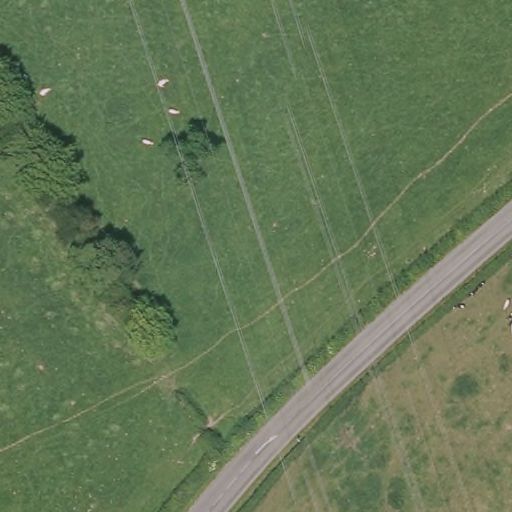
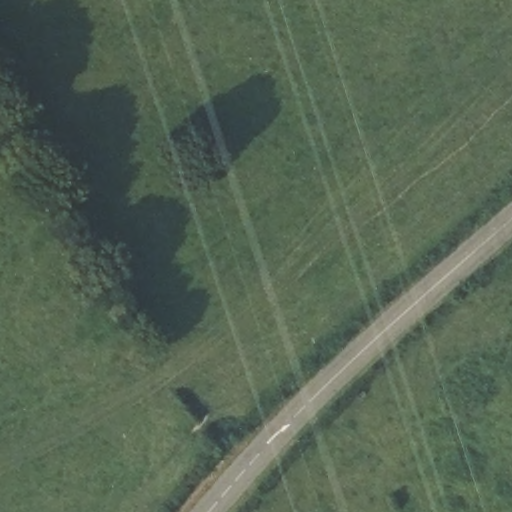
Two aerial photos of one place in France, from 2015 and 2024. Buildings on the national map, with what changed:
[]

